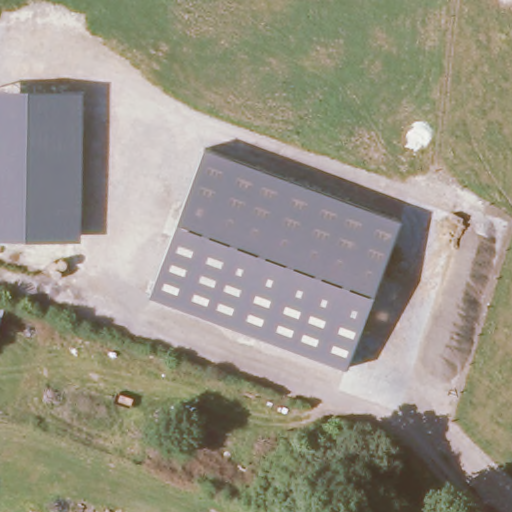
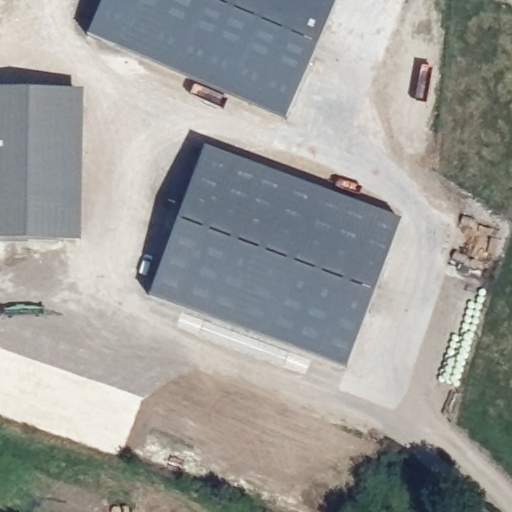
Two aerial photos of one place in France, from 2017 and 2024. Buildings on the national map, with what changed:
new [(87,39),(103,0),(336,0),(285,122),(87,39)]
unchanged [(0,90),(77,92),(84,92),(81,243),(65,242),(0,241),(0,90)]
unchanged [(397,216),(350,366),(148,303),(195,153),(397,216)]
unchanged [(0,341),(0,311),(7,313),(0,341)]

